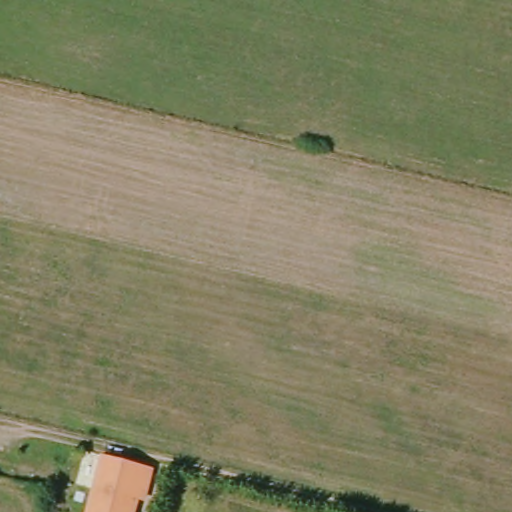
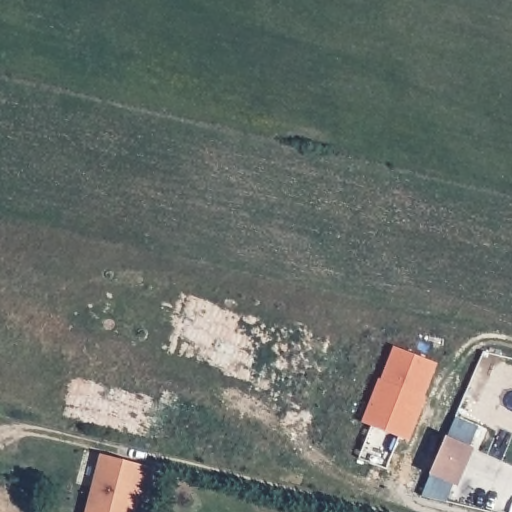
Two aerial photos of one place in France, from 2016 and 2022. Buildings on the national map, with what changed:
new [(401,435),(388,468),(360,457),(372,425),(364,422),(380,379),(382,379),(395,348),(438,364),(425,396),(429,397),(411,440),(401,435)]
new [(431,474),(448,436),(477,449),(460,486),(431,474)]
unchanged [(97,457),(139,464),(146,466),(140,497),(131,496),(127,512),(83,512),(97,457)]

